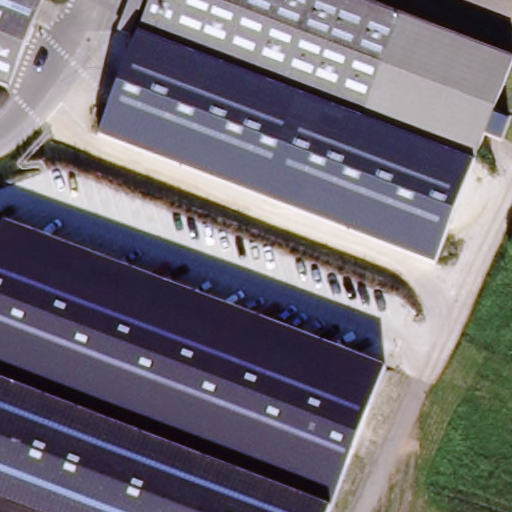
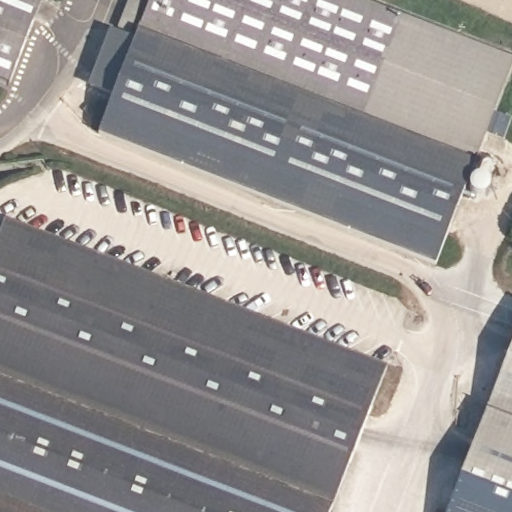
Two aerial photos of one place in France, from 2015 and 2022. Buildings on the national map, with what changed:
unchanged [(5,84),(0,82),(0,0),(41,0),(5,84)]
unchanged [(436,263),(97,132),(135,36),(118,29),(128,0),(141,0),(143,1),(135,19),(145,22),(258,68),(426,136),(475,155),(436,263)]
unchanged [(144,0),(362,0),(511,65),(475,155),(135,19),(144,0)]
unchanged [(319,512),(0,386),(0,233),(3,224),(386,372),(326,512),(319,512)]
new [(448,512),(512,346),(512,512),(448,512)]
unchanged [(0,512),(0,386),(319,512),(0,512)]

